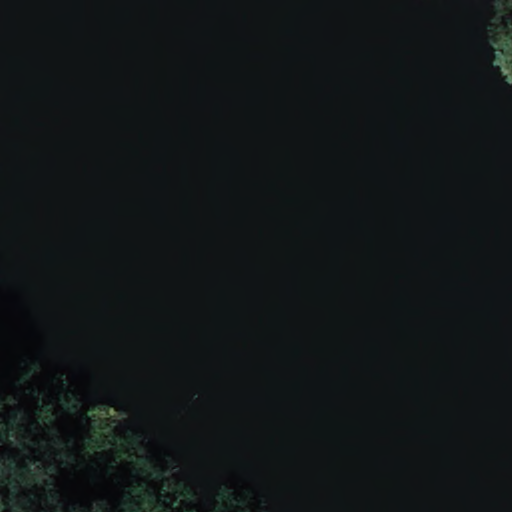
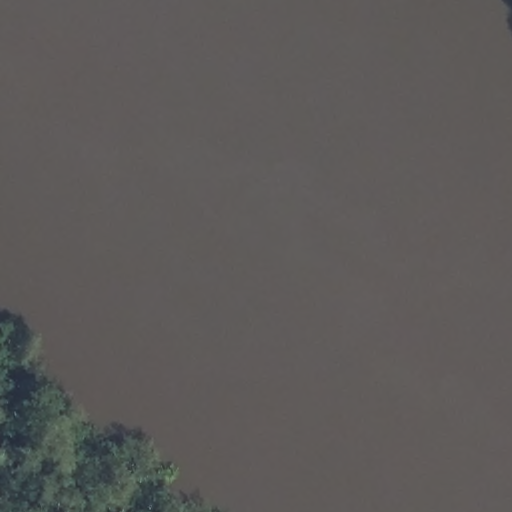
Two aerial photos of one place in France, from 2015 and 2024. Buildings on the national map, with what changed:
[]

